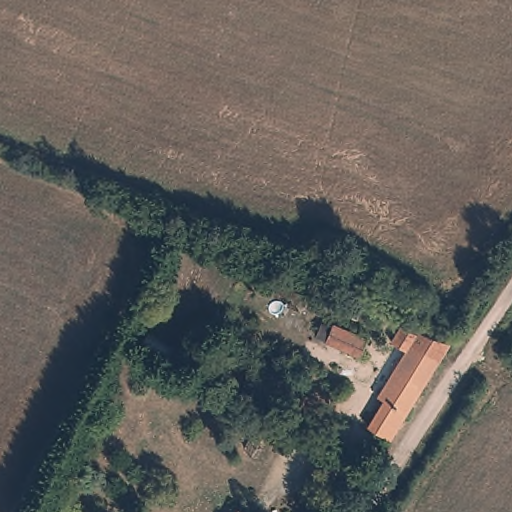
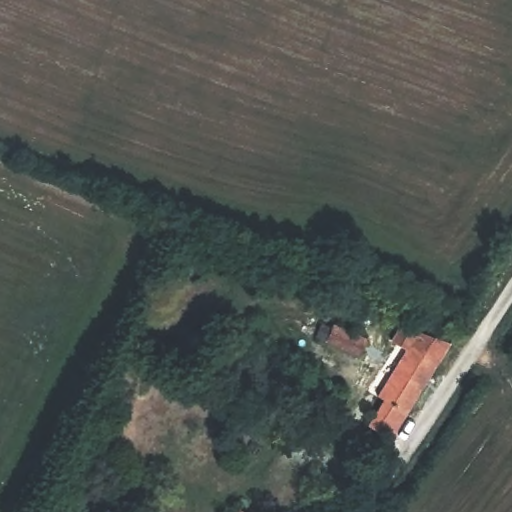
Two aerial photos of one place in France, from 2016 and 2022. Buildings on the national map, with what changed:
unchanged [(316,336),(321,324),(331,328),(333,325),(367,340),(361,355),(316,336)]
unchanged [(368,426),(384,401),(377,397),(406,350),(391,341),(402,324),(417,334),(418,331),(450,343),(390,440),(368,426)]
unchanged [(239,510),(241,512),(237,512),(239,510)]

